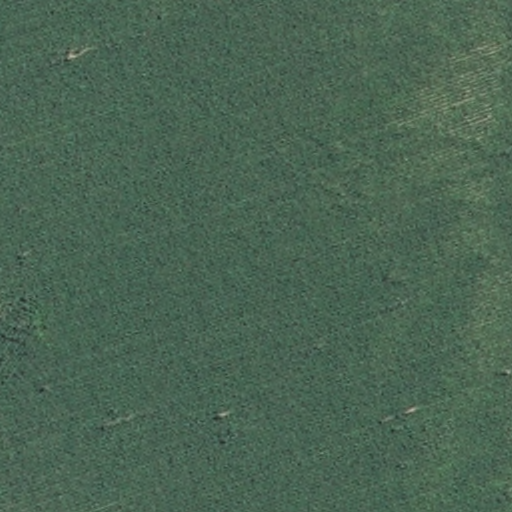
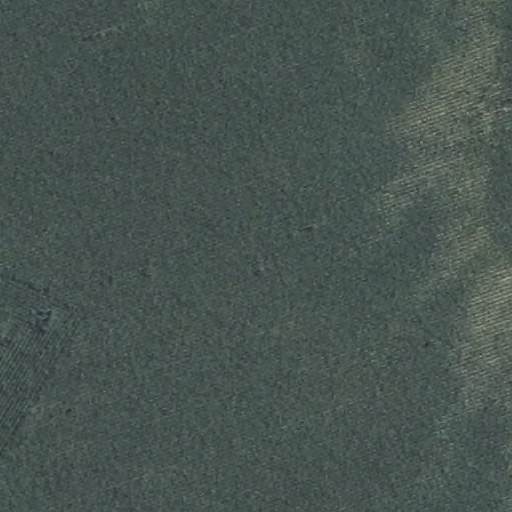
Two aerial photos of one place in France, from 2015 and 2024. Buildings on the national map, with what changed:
[]

